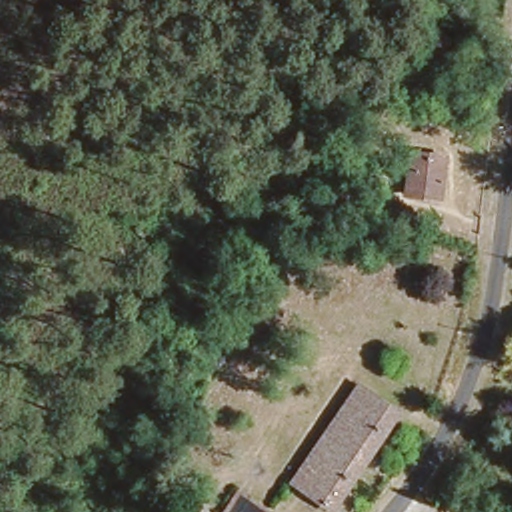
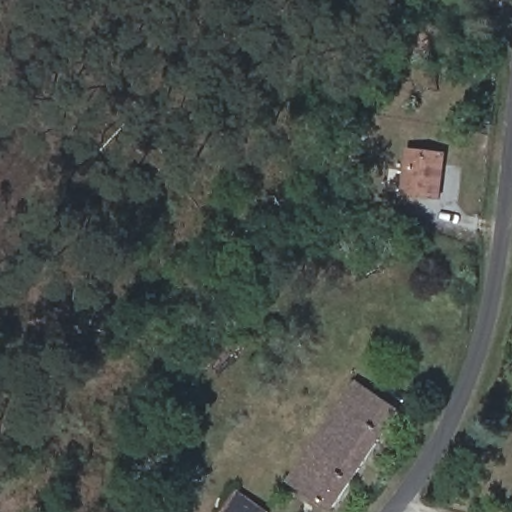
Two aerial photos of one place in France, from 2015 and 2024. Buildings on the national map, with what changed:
unchanged [(448,150),(444,193),(407,190),(411,147),(448,150)]
unchanged [(298,475),(300,473),(294,468),(328,420),(334,425),(366,378),(402,401),(334,501),(298,475)]
unchanged [(271,512),(225,512),(246,486),(272,511),(271,512)]

